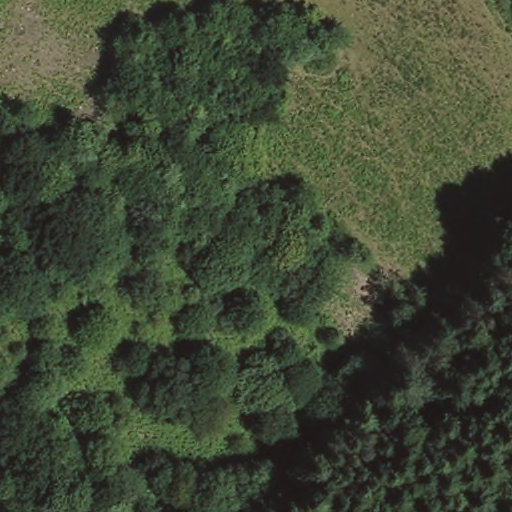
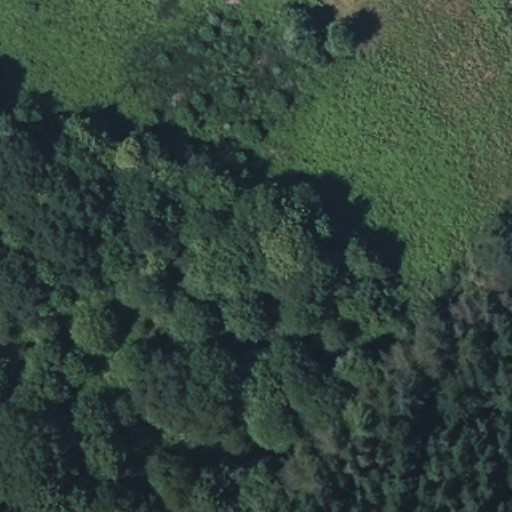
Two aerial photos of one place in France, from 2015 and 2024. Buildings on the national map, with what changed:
unchanged [(311,44),(292,32),(305,11),(324,23),(311,44)]

